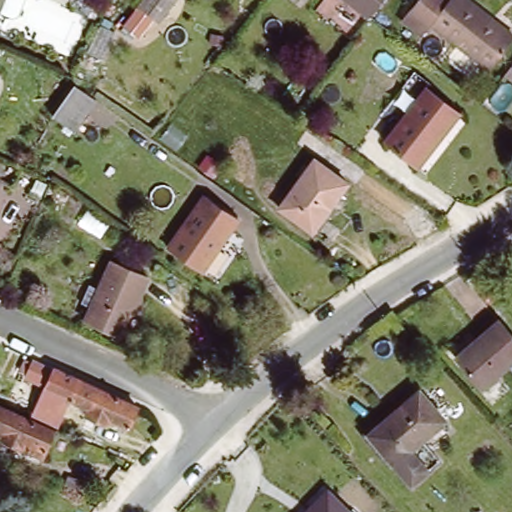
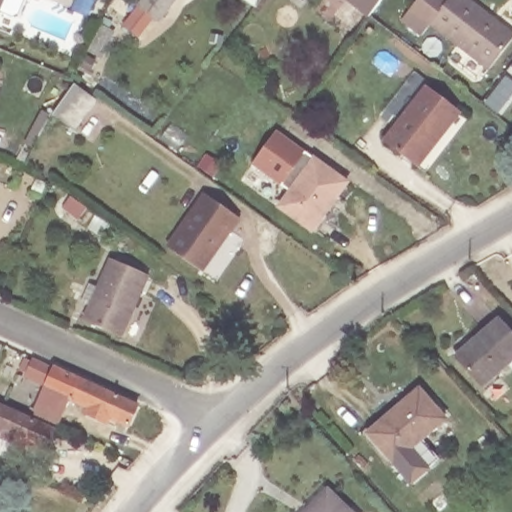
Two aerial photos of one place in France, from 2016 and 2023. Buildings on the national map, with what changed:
unchanged [(0,18),(0,0),(8,0),(0,18)]
unchanged [(158,18),(139,4),(142,0),(173,0),(158,18)]
unchanged [(371,16),(350,0),(384,0),(371,16)]
unchanged [(512,42),(512,43),(485,76),(426,28),(417,39),(398,24),(417,0),(448,0),(449,1),(450,0),(460,0),(512,42)]
unchanged [(77,126),(52,115),(73,82),(97,94),(77,126)]
unchanged [(425,84),(462,111),(422,165),(385,136),(425,84)]
new [(276,130),(307,151),(282,187),(251,165),(276,130)]
unchanged [(307,151),(348,180),(312,235),(270,206),(307,151)]
unchanged [(202,185),(242,215),(203,268),(166,246),(202,185)]
new [(73,195),(90,207),(82,220),(65,208),(73,195)]
unchanged [(148,274),(125,335),(90,321),(95,308),(85,305),(93,285),(103,290),(113,261),(148,274)]
unchanged [(500,319),(512,332),(512,359),(485,384),(460,356),(500,319)]
unchanged [(145,400),(131,431),(40,391),(55,360),(145,400)]
unchanged [(417,383),(443,412),(423,430),(441,450),(412,476),(394,457),(367,428),(417,383)]
unchanged [(0,431),(0,394),(56,424),(42,458),(0,431)]
unchanged [(354,512),(304,512),(328,487),(354,512)]

